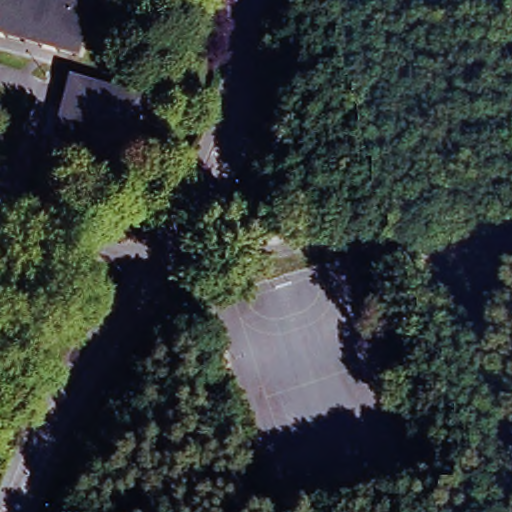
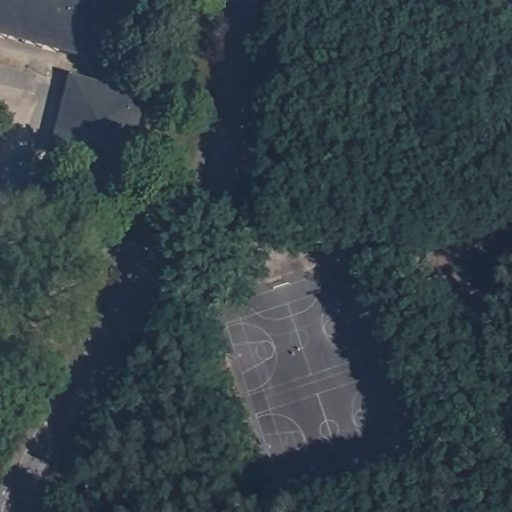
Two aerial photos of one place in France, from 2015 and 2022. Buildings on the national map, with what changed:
unchanged [(70,0),(89,5),(77,41),(0,21),(0,0),(70,0)]
unchanged [(76,58),(0,38),(0,21),(77,41),(76,58)]
unchanged [(122,169),(50,151),(70,80),(139,100),(122,169)]

